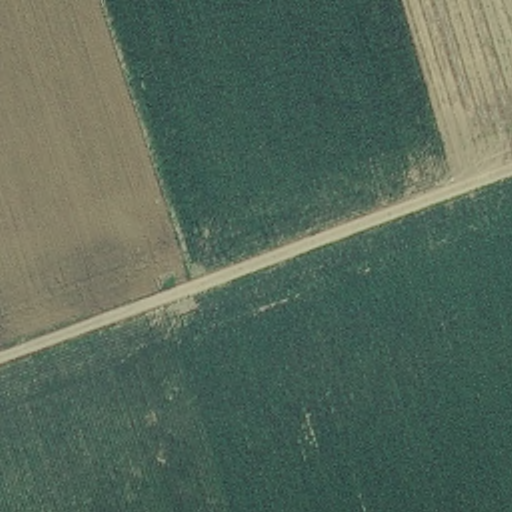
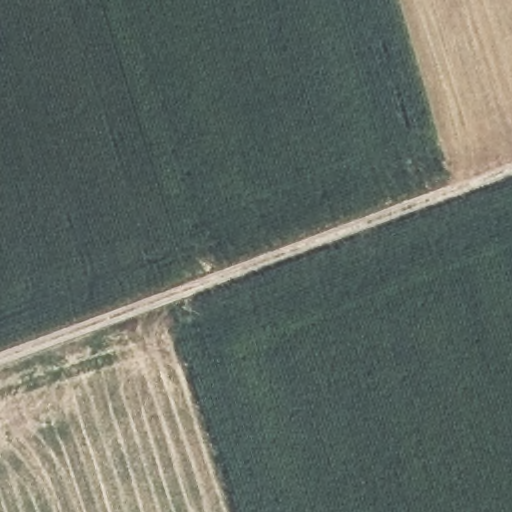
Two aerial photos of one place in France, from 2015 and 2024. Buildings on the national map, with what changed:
[]

